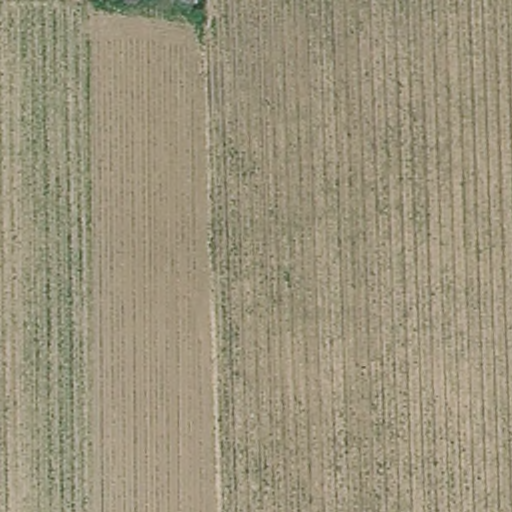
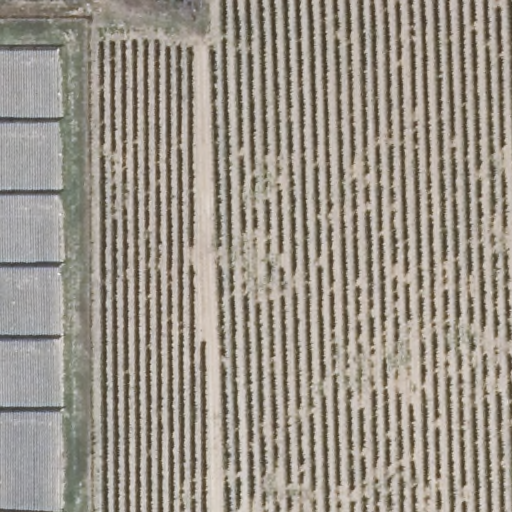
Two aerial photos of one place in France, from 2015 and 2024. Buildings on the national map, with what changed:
demolished [(174,3),(162,2),(162,0),(174,0),(174,3)]
new [(74,22),(78,439),(0,440),(0,23),(74,22)]

